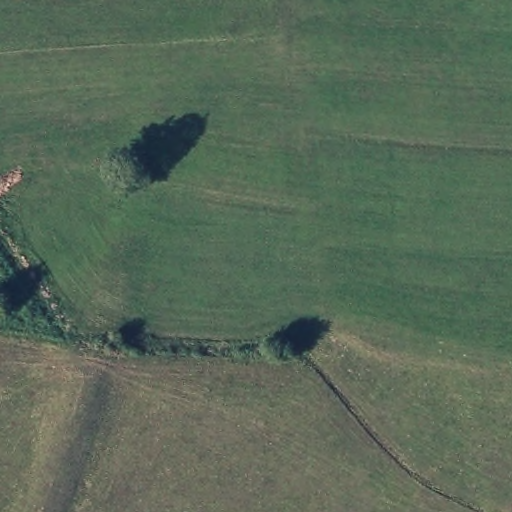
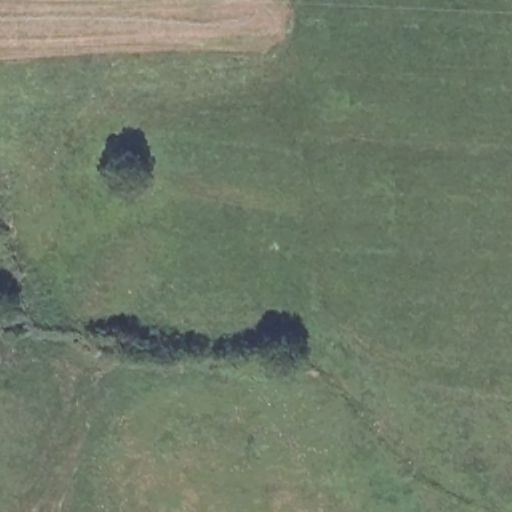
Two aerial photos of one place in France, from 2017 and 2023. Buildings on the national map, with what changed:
[]

